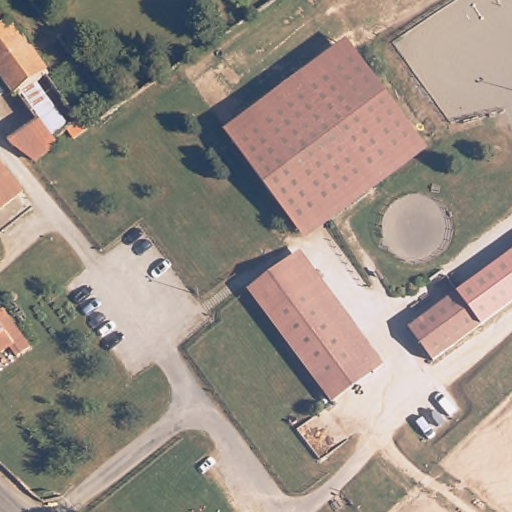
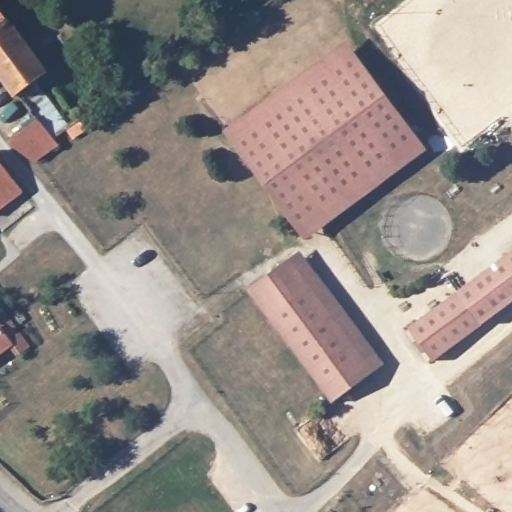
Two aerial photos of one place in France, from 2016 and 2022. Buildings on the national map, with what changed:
unchanged [(15,25),(31,45),(0,68),(0,7),(14,26),(15,25)]
unchanged [(0,68),(31,45),(54,77),(51,78),(23,100),(20,102),(0,76),(0,68)]
unchanged [(354,52),(419,139),(297,230),(232,142),(354,52)]
unchanged [(36,120),(53,142),(53,144),(33,162),(11,148),(7,142),(36,120)]
unchanged [(19,169),(32,187),(1,212),(0,211),(0,147),(1,146),(19,169)]
unchanged [(457,292),(512,250),(512,301),(481,325),(457,292)]
unchanged [(338,397),(327,384),(253,285),(258,282),(294,254),(347,325),(369,353),(379,367),(338,397)]
unchanged [(457,292),(481,325),(433,361),(409,328),(457,292)]
unchanged [(14,348),(1,357),(0,358),(0,314),(7,310),(28,338),(35,348),(21,357),(14,348)]

